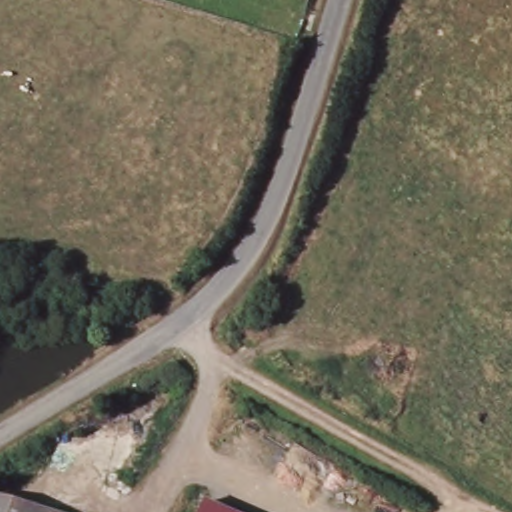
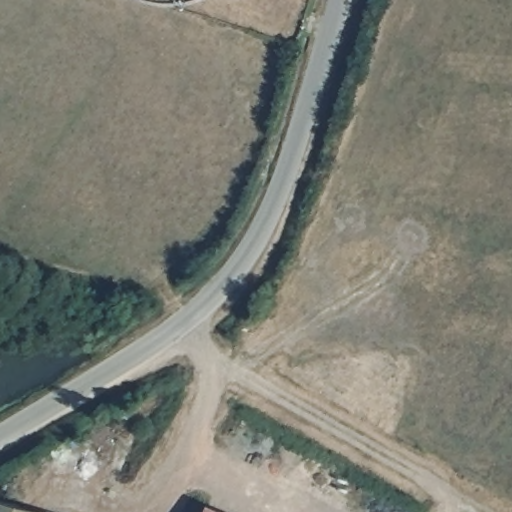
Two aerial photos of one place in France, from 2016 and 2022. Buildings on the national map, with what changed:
unchanged [(0,498),(50,512),(0,512),(0,498)]
unchanged [(226,512),(201,512),(205,503),(226,512)]

